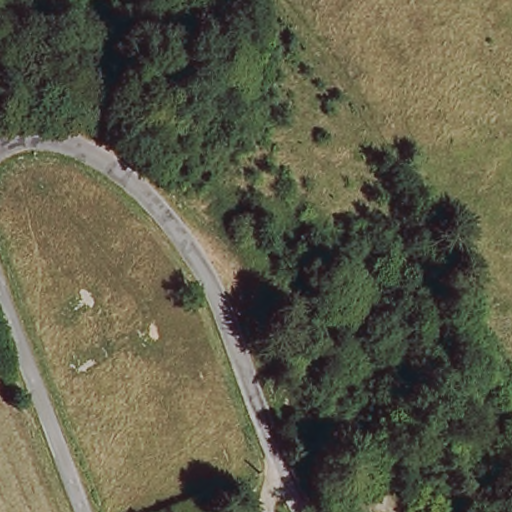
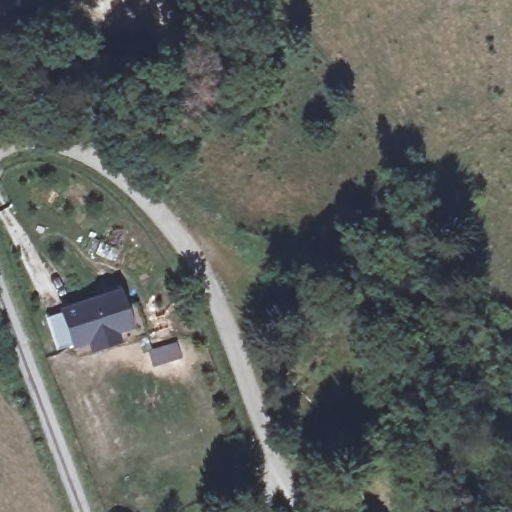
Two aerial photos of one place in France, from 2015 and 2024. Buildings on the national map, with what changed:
new [(60,314),(60,309),(119,288),(132,329),(118,334),(121,343),(90,354),(88,344),(71,349),(70,344),(57,349),(47,318),(60,314)]

